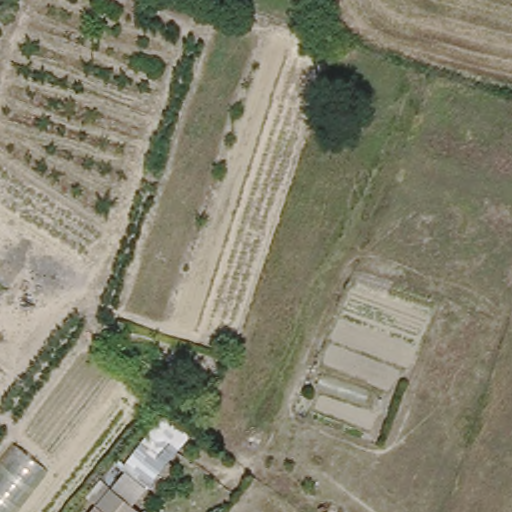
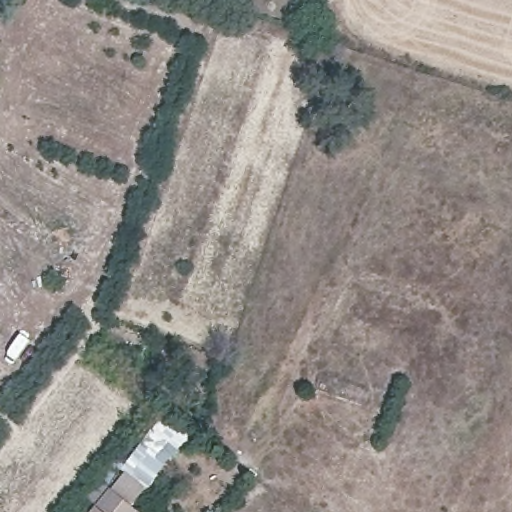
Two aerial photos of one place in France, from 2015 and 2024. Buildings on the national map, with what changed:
unchanged [(115,490),(101,507),(91,498),(118,463),(126,470),(145,446),(171,466),(138,507),(115,490)]
demolished [(53,476),(24,512),(0,512),(0,465),(13,450),(53,476)]
unchanged [(97,512),(101,507),(115,490),(138,507),(144,512),(97,512)]

